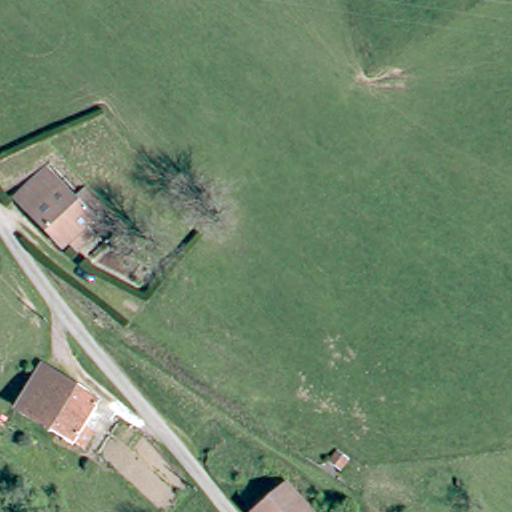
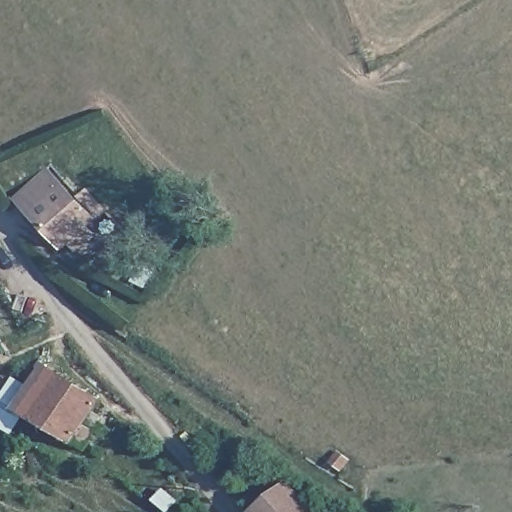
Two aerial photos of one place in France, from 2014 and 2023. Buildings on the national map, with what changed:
unchanged [(85,216),(69,237),(61,230),(55,236),(21,204),(48,172),(52,172),(84,203),(79,210),(85,216)]
unchanged [(92,434),(84,449),(17,408),(42,368),(97,401),(94,407),(100,411),(89,432),(92,434)]
unchanged [(350,459),(340,468),(329,457),(339,447),(350,459)]
unchanged [(254,512),(290,482),(316,512),(254,512)]

